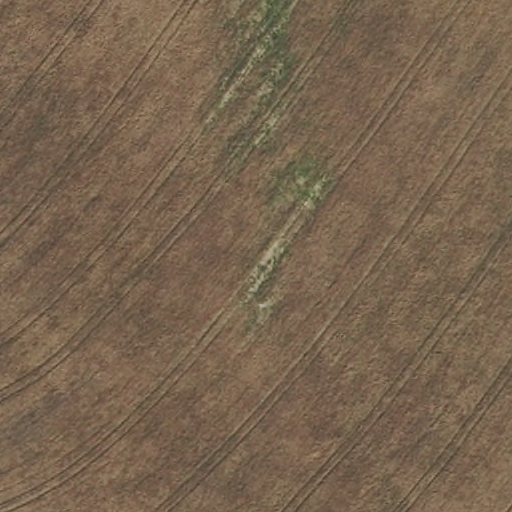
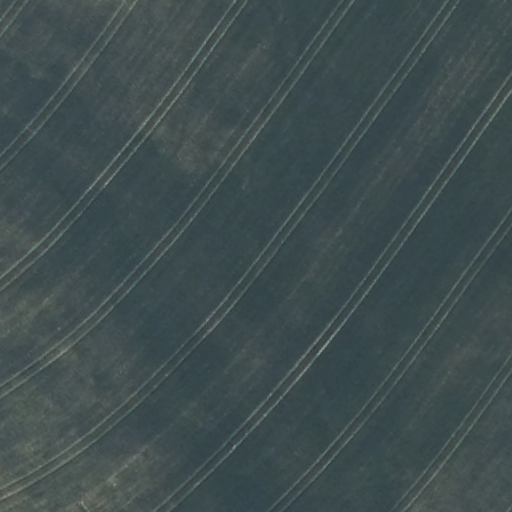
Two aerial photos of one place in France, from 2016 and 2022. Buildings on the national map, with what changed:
[]

